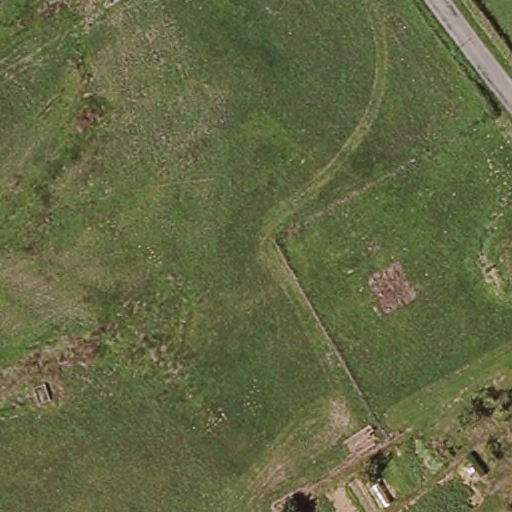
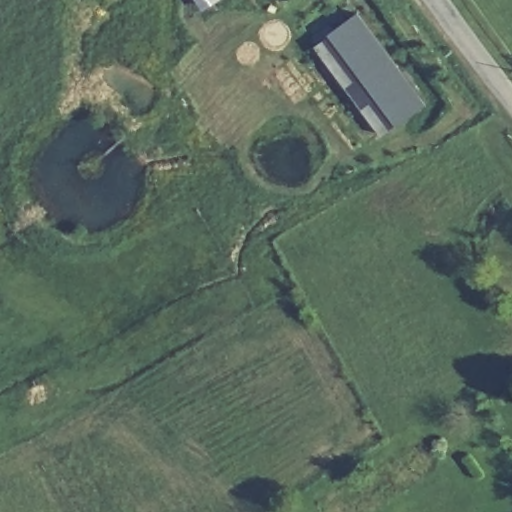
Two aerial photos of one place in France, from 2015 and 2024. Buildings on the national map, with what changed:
new [(428,104),(400,125),(385,136),(317,45),(332,34),(331,33),(359,11),(428,104)]

